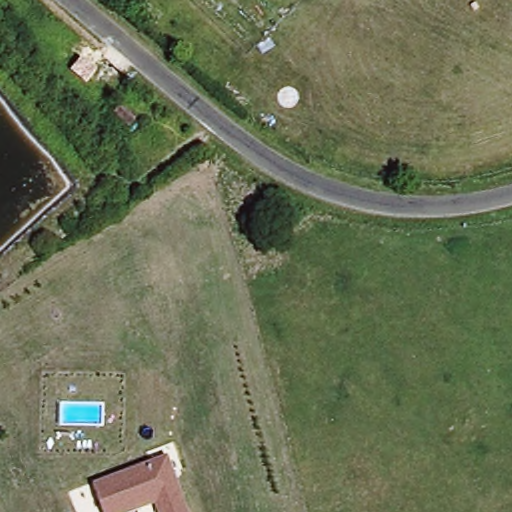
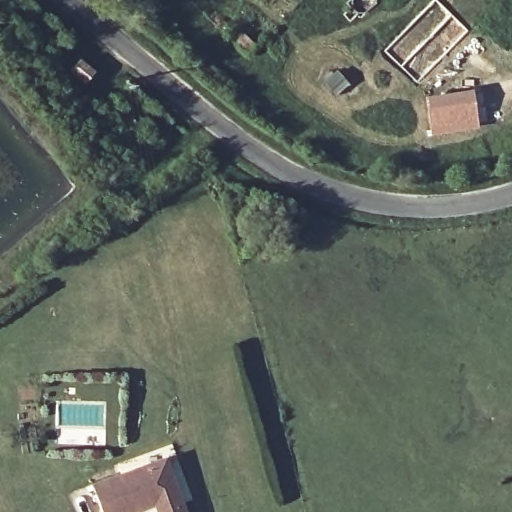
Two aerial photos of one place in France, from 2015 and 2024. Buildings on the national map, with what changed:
new [(463,32),(415,80),(385,51),(436,2),(463,32)]
new [(427,97),(472,90),(477,126),(432,134),(427,97)]
unchanged [(136,512),(106,512),(95,483),(155,462),(172,455),(177,472),(192,512),(162,512),(159,503),(136,512)]

